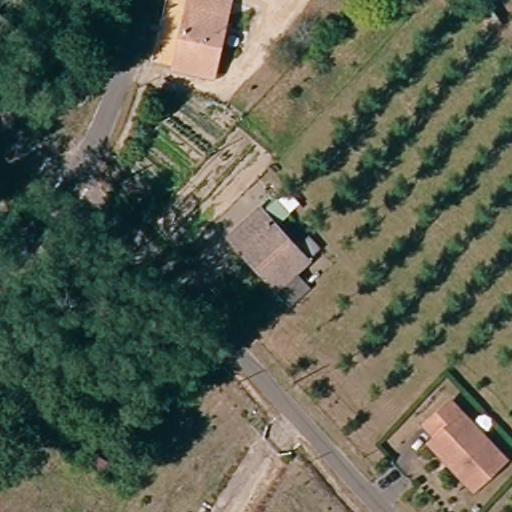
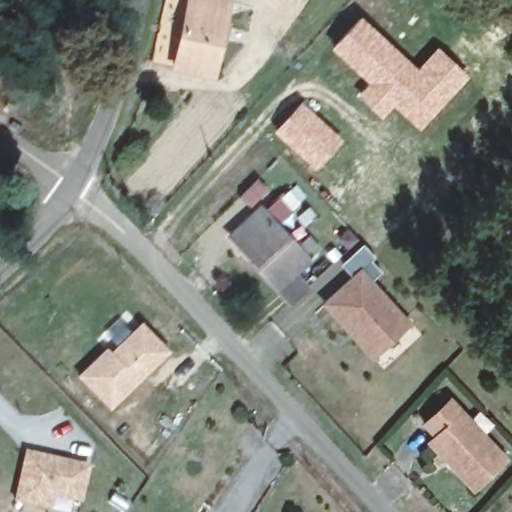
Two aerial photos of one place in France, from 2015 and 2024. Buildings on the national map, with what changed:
unchanged [(226,1),(216,71),(178,65),(187,0),(220,0),(226,1)]
new [(359,15),(416,66),(436,45),(469,76),(419,131),(392,107),(381,120),(355,95),(366,82),(328,47),(359,15)]
new [(300,100),(344,140),(313,171),(272,130),(300,100)]
unchanged [(274,285),(224,235),(253,206),(290,243),(301,230),(315,244),(290,269),(304,283),(288,299),(274,285)]
new [(374,256),(370,261),(380,272),(372,280),(412,324),(373,361),(320,303),(350,275),(340,264),(362,245),(374,256)]
new [(110,351),(141,321),(170,350),(110,409),(76,375),(106,347),(110,351)]
unchanged [(427,423),(451,399),(507,455),(478,485),(459,466),(466,460),(440,433),(439,435),(427,423)]
new [(89,465),(82,502),(54,495),(51,510),(13,501),(24,449),(89,465)]

